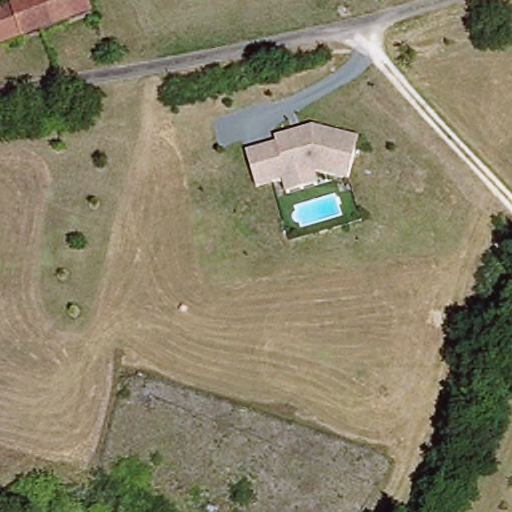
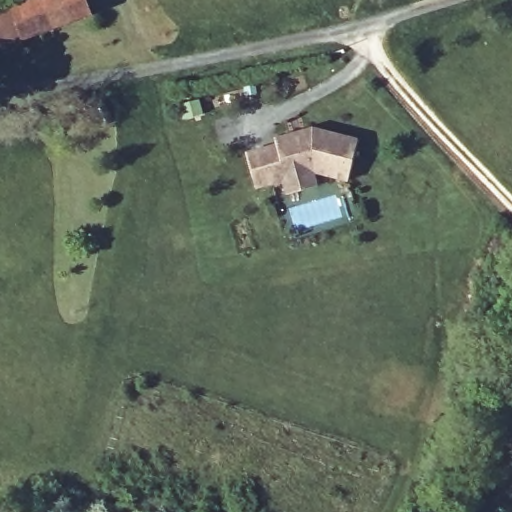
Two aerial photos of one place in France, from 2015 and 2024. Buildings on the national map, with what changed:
unchanged [(95,8),(24,38),(10,7),(29,0),(92,0),(95,8)]
unchanged [(24,38),(0,47),(0,12),(10,7),(24,38)]
unchanged [(247,153),(275,146),(274,141),(312,130),(358,141),(347,184),(317,175),(322,186),(285,196),(283,183),(259,191),(247,153)]

